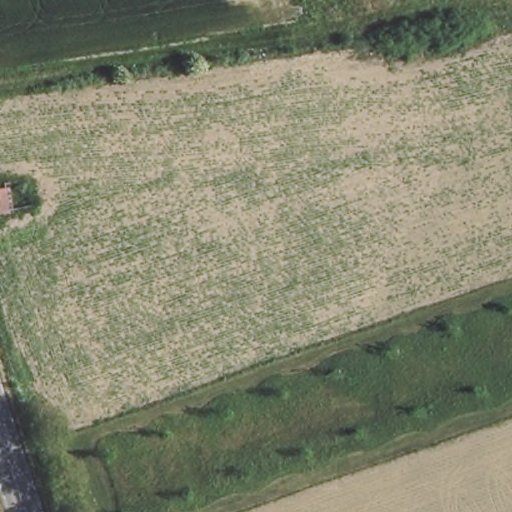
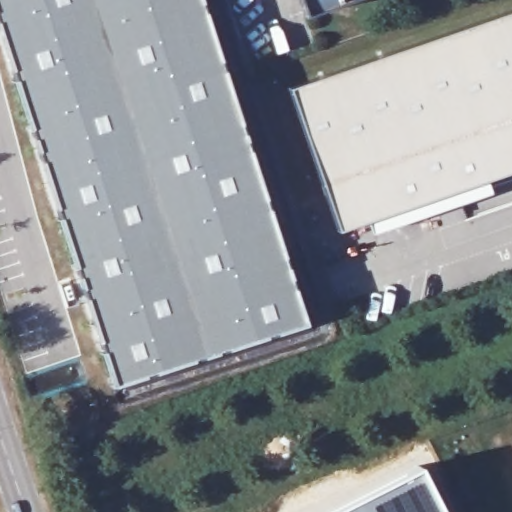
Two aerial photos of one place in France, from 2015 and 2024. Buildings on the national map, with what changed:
new [(113,386),(0,34),(0,0),(198,0),(304,325),(113,386)]
unchanged [(304,17),(298,0),(350,0),(304,17)]
new [(512,172),(485,181),(490,197),(371,238),(365,223),(333,233),(284,92),(512,13),(512,172)]
demolished [(5,209),(0,210),(0,187),(3,187),(5,209)]
new [(442,512),(328,512),(418,464),(442,512)]

